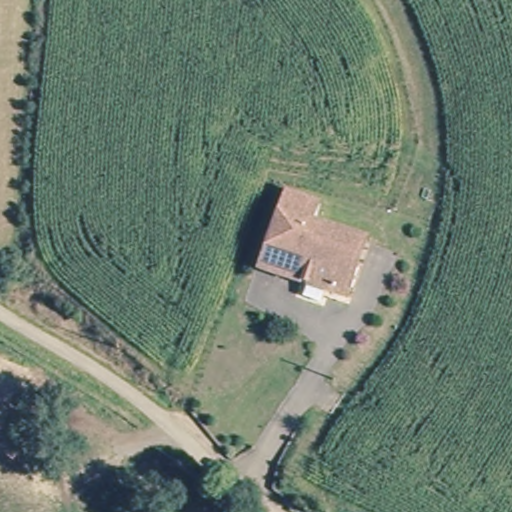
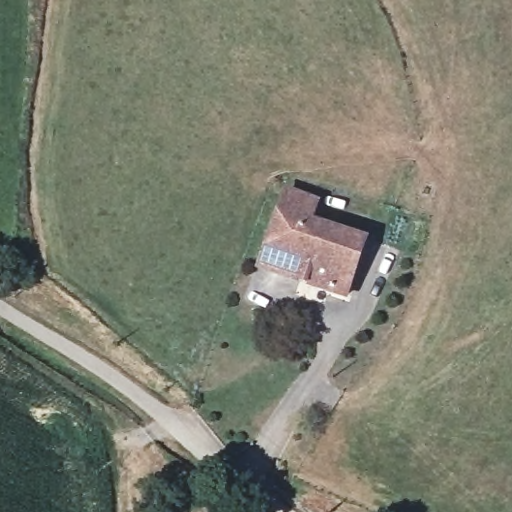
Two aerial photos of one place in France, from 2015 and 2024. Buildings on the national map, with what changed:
unchanged [(318,202),(309,229),(365,249),(346,295),(277,269),(260,264),(290,190),(318,202)]
unchanged [(271,289),(314,315),(293,348),(251,324),(271,289)]

